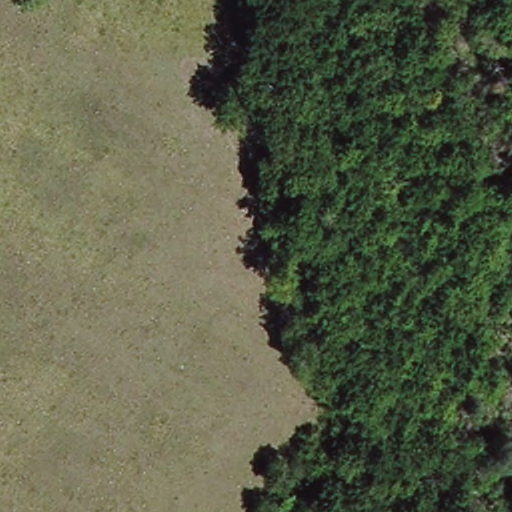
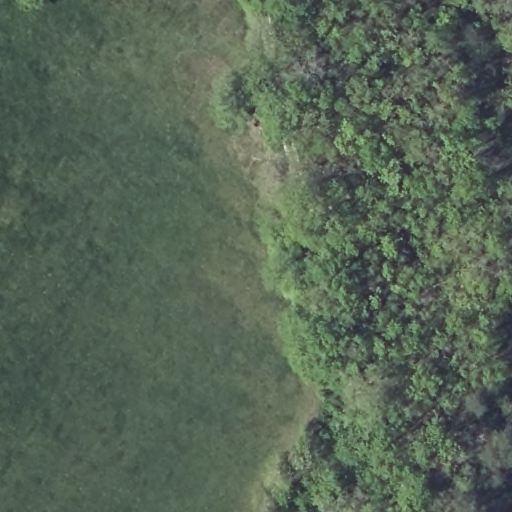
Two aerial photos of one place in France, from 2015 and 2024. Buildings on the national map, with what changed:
[]

